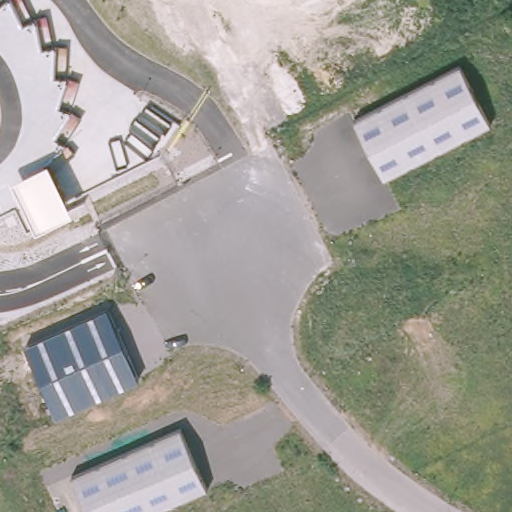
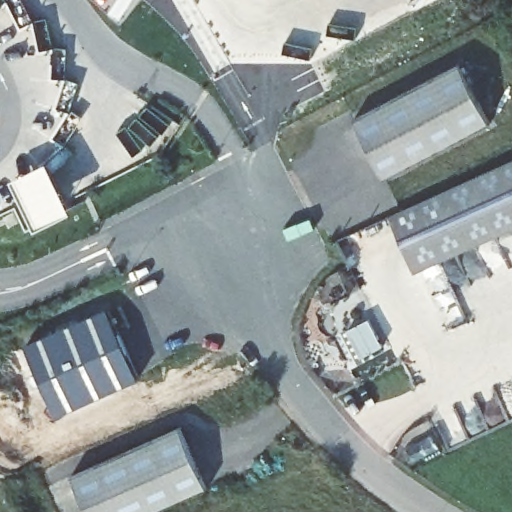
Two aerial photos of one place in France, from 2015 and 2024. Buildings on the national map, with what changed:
unchanged [(490,123),(383,178),(353,119),(460,64),(490,123)]
new [(512,228),(418,271),(392,215),(512,161),(512,228)]
unchanged [(49,162),(73,212),(37,230),(13,180),(49,162)]
unchanged [(139,380),(56,417),(24,346),(108,308),(139,380)]
new [(369,321),(383,347),(361,358),(348,332),(369,321)]
unchanged [(152,512),(87,512),(71,476),(180,427),(207,488),(152,512)]

